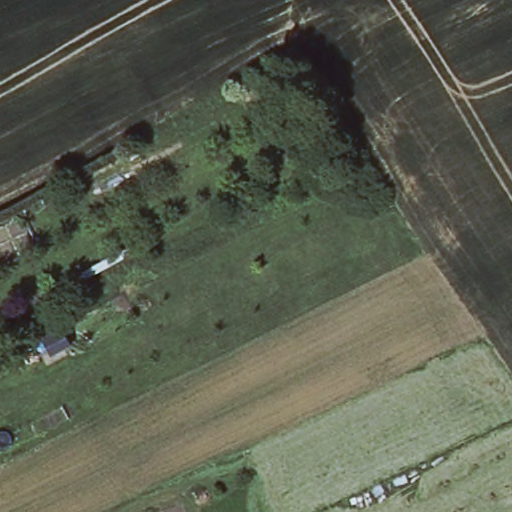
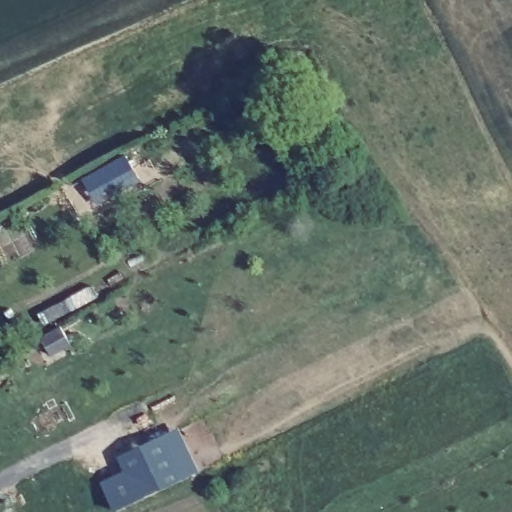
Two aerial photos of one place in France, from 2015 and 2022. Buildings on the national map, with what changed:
new [(143,186),(96,211),(80,183),(122,158),(143,186)]
new [(71,349),(51,360),(41,341),(61,329),(71,349)]
new [(198,473),(114,512),(113,512),(100,483),(125,471),(118,459),(178,432),(198,473)]

